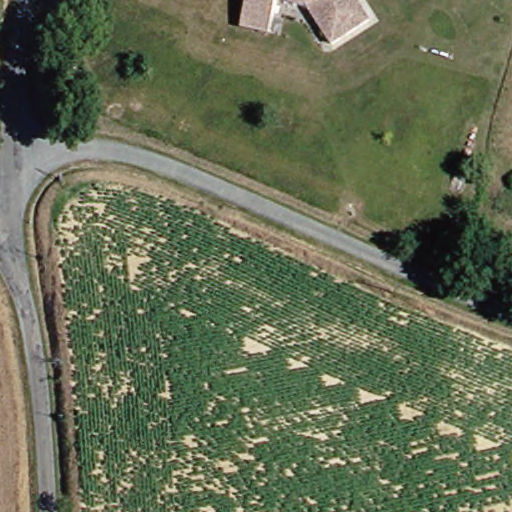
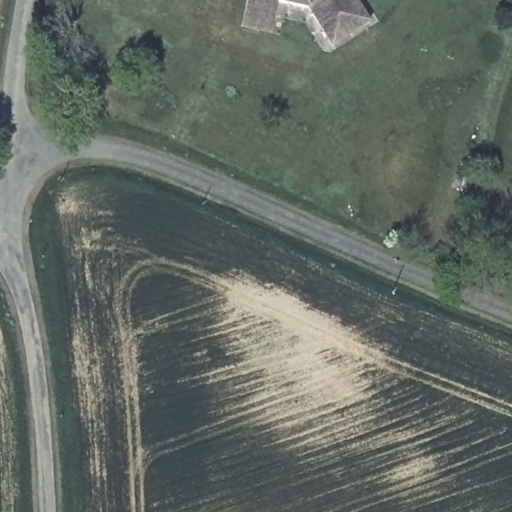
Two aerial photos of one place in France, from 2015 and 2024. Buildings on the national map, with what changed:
unchanged [(248,13),(250,0),(358,0),(372,22),(338,46),(312,9),(279,5),(275,19),(273,35),(244,30),(248,13)]

